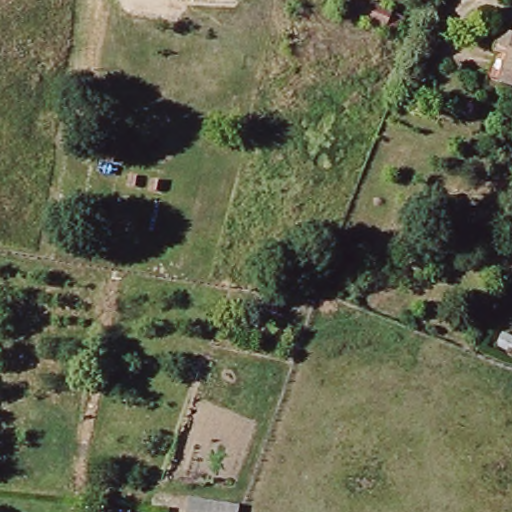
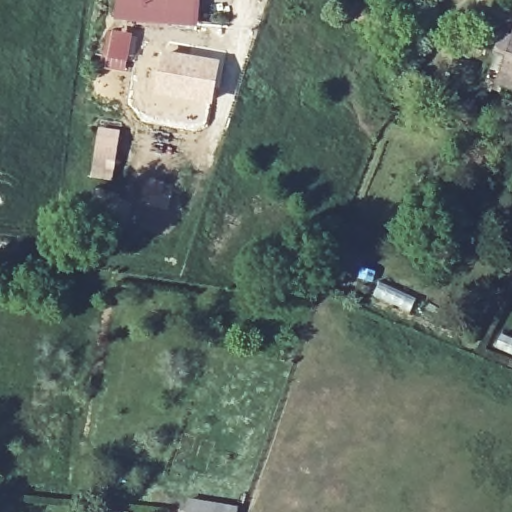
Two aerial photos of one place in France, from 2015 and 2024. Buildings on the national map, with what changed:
new [(115,20),(117,0),(196,0),(194,26),(115,20)]
new [(111,30),(132,34),(125,72),(105,67),(111,30)]
unchanged [(489,82),(505,36),(512,39),(512,89),(489,82)]
new [(162,49),(221,60),(212,106),(154,94),(162,49)]
new [(99,125),(121,129),(112,181),(89,176),(99,125)]
unchanged [(190,498),(239,505),(238,512),(188,512),(190,498)]

